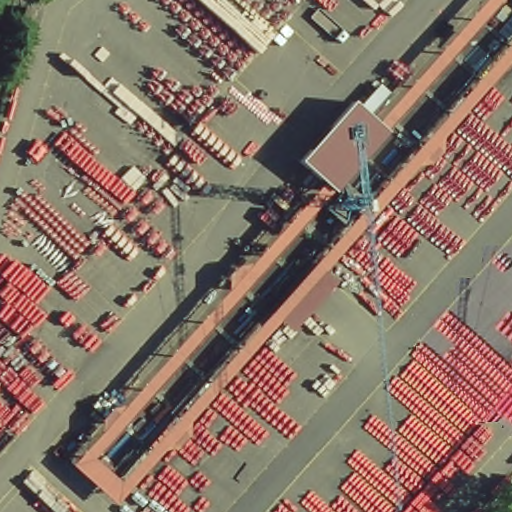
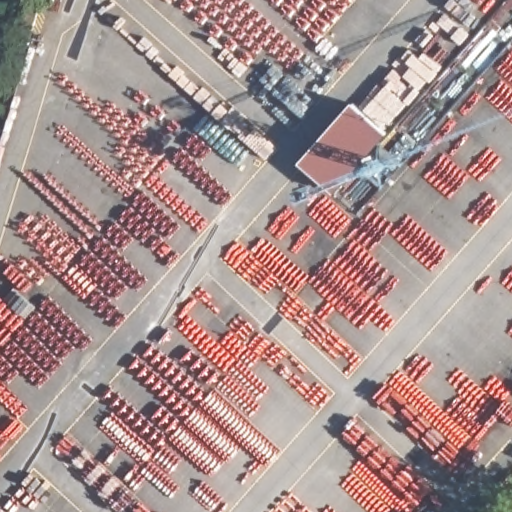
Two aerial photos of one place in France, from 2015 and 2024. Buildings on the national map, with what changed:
unchanged [(343,191),(333,182),(310,160),(355,103),(380,125),(392,135),(343,191)]

